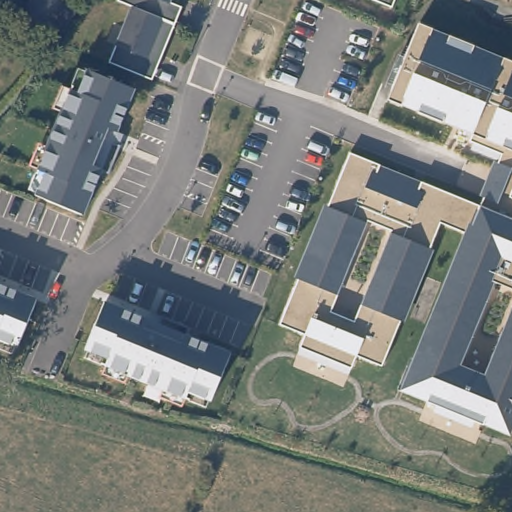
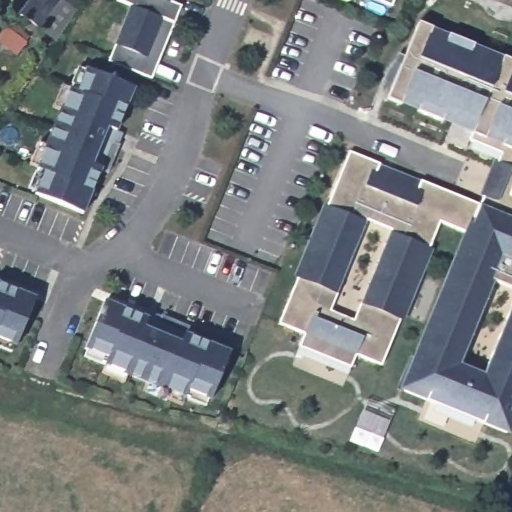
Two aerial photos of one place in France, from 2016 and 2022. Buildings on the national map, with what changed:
unchanged [(41,0),(68,0),(70,2),(68,5),(81,14),(60,47),(26,22),(41,0)]
unchanged [(171,1),(183,6),(154,79),(109,60),(131,4),(122,0),(171,0),(171,1)]
unchanged [(375,0),(395,0),(393,7),(375,0)]
unchanged [(511,435),(402,391),(465,233),(444,224),(383,366),(361,358),(355,371),(300,348),(307,333),(281,323),(352,150),(477,203),(499,150),(388,104),(421,23),(512,61),(512,287),(494,280),(460,365),(487,376),(512,311),(512,431),(511,435)]
unchanged [(136,87),(87,212),(31,191),(80,67),(136,87)]
unchanged [(16,354),(0,348),(0,282),(38,297),(16,354)]
unchanged [(230,351),(206,411),(85,359),(106,303),(230,351)]

